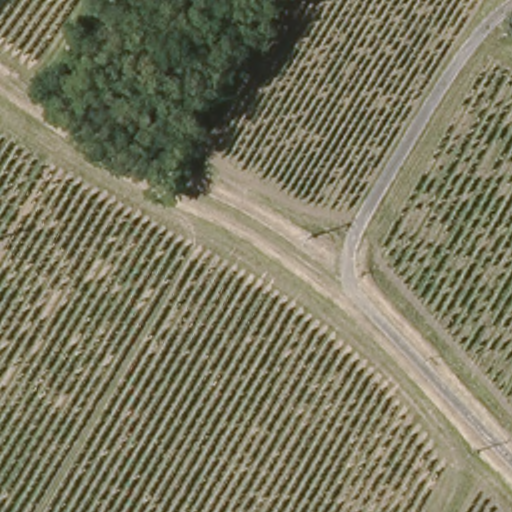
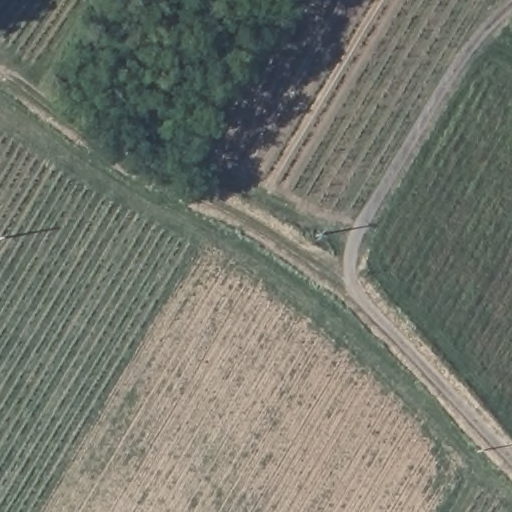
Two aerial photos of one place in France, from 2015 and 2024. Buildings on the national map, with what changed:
[]

